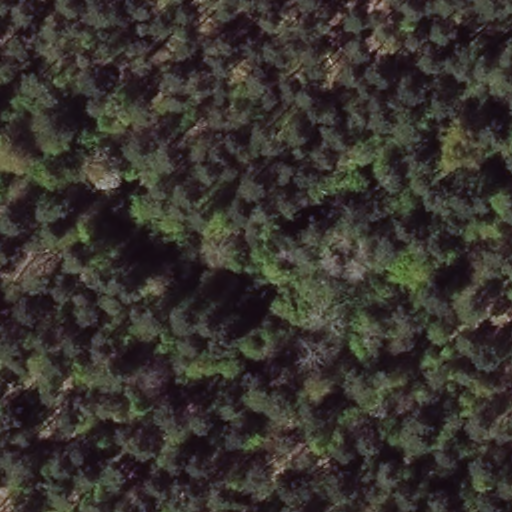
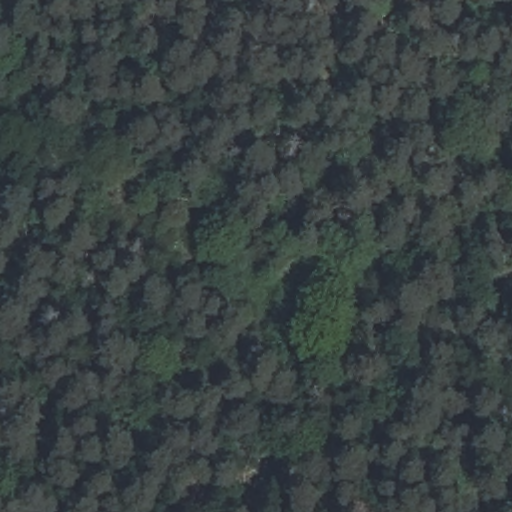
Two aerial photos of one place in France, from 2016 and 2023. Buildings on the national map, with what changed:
[]

